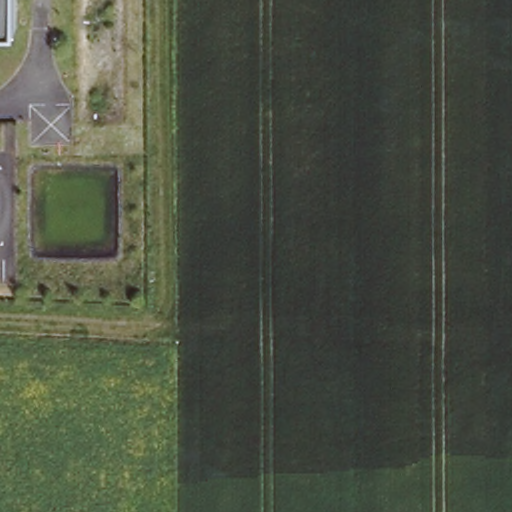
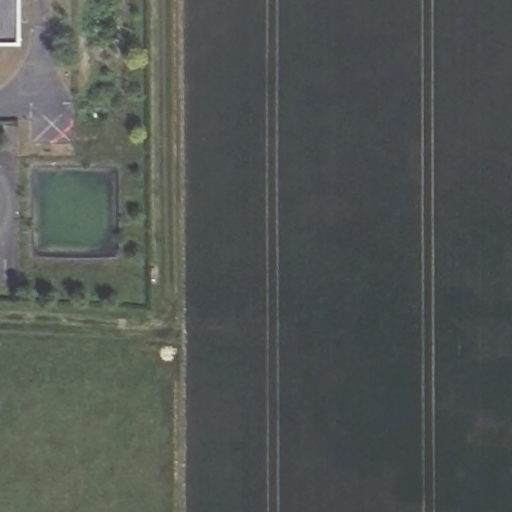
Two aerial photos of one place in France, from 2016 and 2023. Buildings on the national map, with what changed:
unchanged [(0,27),(0,0),(10,0),(10,26),(0,27)]

